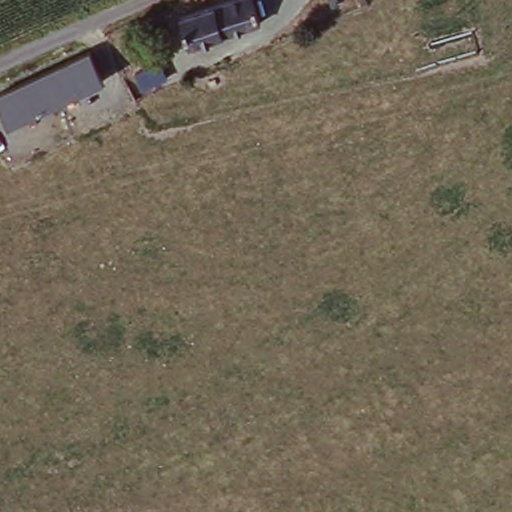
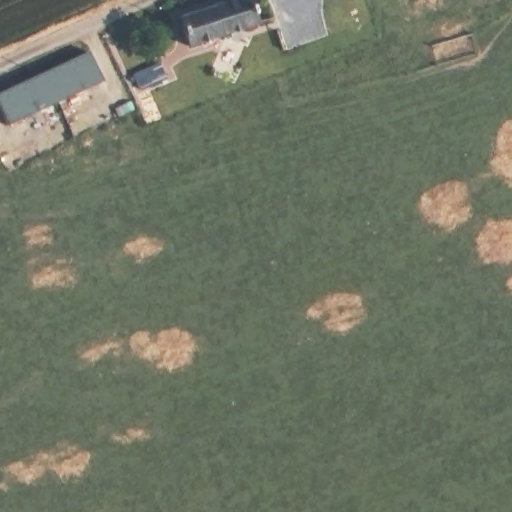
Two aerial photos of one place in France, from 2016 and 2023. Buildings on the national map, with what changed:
unchanged [(256,0),(263,26),(191,47),(182,19),(247,0),(256,0)]
unchanged [(120,78),(91,90),(9,127),(0,111),(0,96),(105,50),(120,78)]

